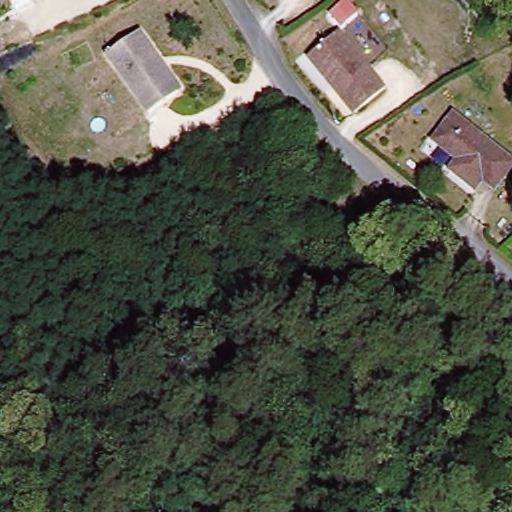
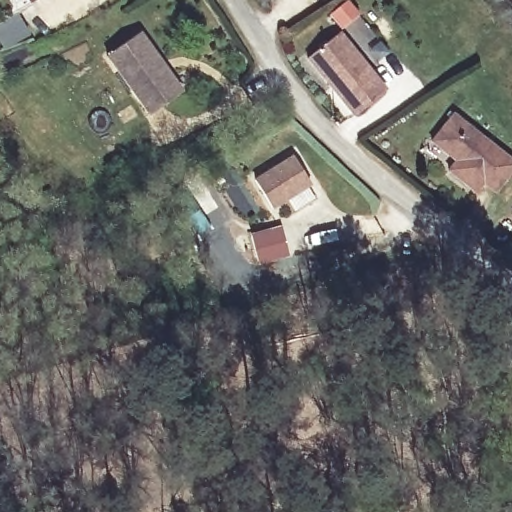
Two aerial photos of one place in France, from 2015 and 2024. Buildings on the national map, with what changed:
unchanged [(31,3),(16,12),(9,0),(32,0),(30,1),(31,3)]
unchanged [(342,29),(334,16),(350,5),(359,17),(342,29)]
unchanged [(107,55),(141,32),(161,62),(157,65),(178,95),(148,115),(107,55)]
unchanged [(340,34),(384,92),(352,116),(307,58),(340,34)]
unchanged [(512,156),(512,177),(501,191),(489,181),(481,191),(455,170),(462,160),(438,140),(459,114),(512,156)]
new [(292,158),(309,185),(271,209),(253,181),(292,158)]
new [(278,229),(281,242),(285,257),(256,264),(250,236),(258,234),(278,229)]

